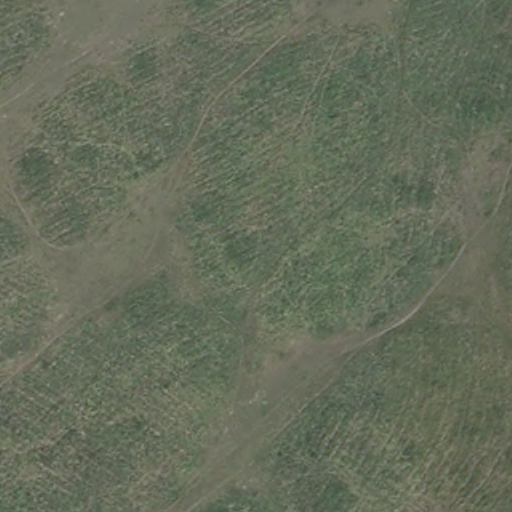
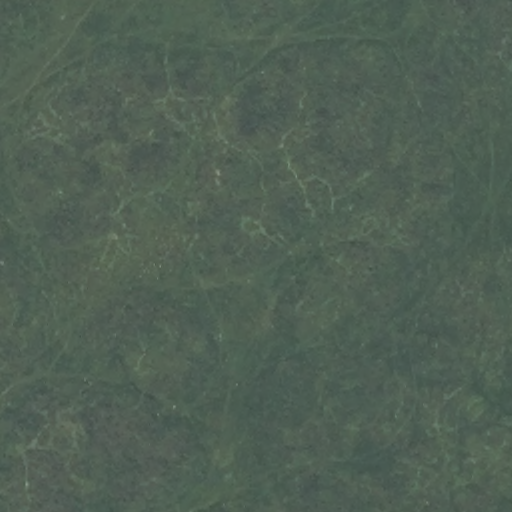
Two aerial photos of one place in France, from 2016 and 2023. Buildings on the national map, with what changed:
[]

